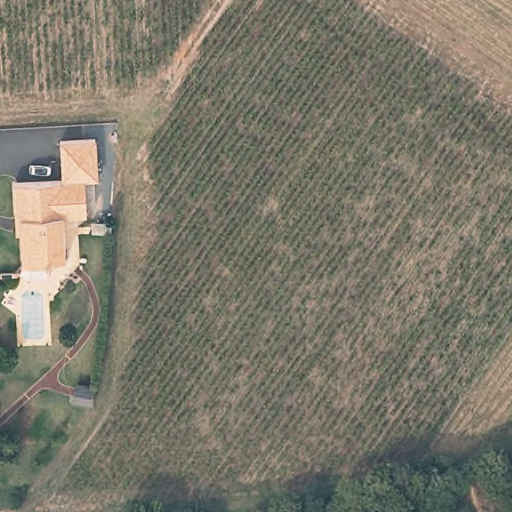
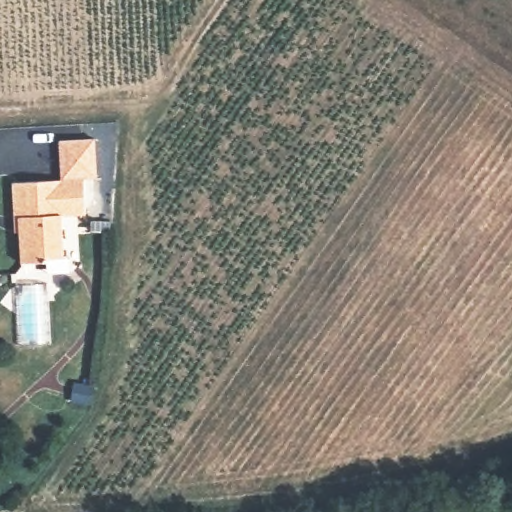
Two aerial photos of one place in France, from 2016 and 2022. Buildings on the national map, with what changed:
unchanged [(16,218),(14,183),(26,183),(85,179),(86,207),(86,214),(82,214),(63,216),(65,248),(65,257),(60,257),(49,258),(49,262),(33,262),(24,263),(22,232),(16,232),(16,218)]

